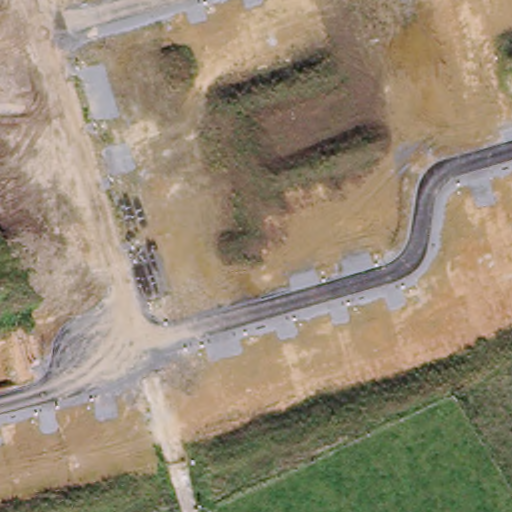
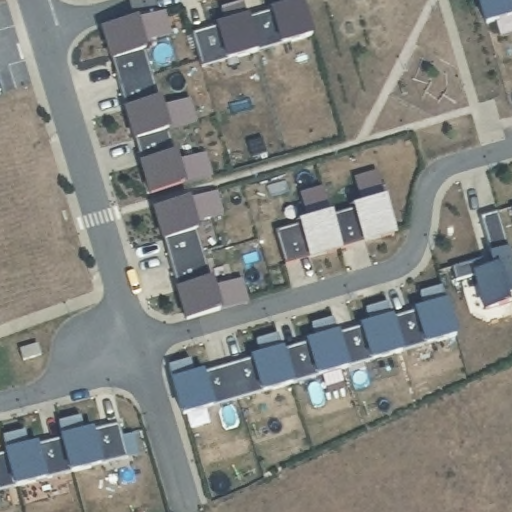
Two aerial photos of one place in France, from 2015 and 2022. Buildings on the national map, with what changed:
new [(280,49),(278,41),(258,46),(259,55),(227,65),(224,56),(203,68),(192,36),(215,25),(226,21),(222,9),(243,2),(247,15),(269,8),(279,5),(277,0),(301,0),(314,38),(280,49)]
new [(485,27),(477,0),(512,0),(512,19),(485,27)]
new [(173,36),(144,39),(146,54),(159,100),(162,99),(163,104),(190,98),(198,121),(169,126),(177,154),(178,158),(207,153),(214,178),(184,181),(187,187),(149,199),(101,29),(165,11),(173,36)]
new [(332,215),(363,206),(354,178),(377,170),(387,198),(398,234),(364,244),(362,238),(341,244),(344,251),(309,261),(308,256),(285,265),(275,232),(298,223),(308,219),(299,193),(323,185),(332,215)]
new [(225,215),(195,220),(199,236),(212,280),(213,284),(243,277),(251,303),(222,309),(223,314),(185,323),(175,290),(153,210),(189,199),(218,191),(225,215)]
new [(508,250),(512,263),(512,292),(505,293),(509,306),(484,314),(472,275),(456,281),(452,267),(488,255),(492,254),(481,219),(496,213),(508,250)]
new [(195,373),(204,370),(250,357),(259,354),(255,341),(277,334),(280,348),(284,347),(314,337),(310,325),(333,319),(336,330),(338,329),(339,332),(359,326),(369,323),(364,309),(387,302),(391,316),(413,309),(422,306),(418,294),(441,286),(446,299),(458,337),(424,347),(421,340),(402,346),(404,352),(369,362),(368,355),(348,363),(349,369),(316,379),(314,372),(292,380),(294,387),(261,397),(259,388),(212,402),(214,407),(182,418),(169,381),(173,380),(168,367),(191,360),(195,373)]
new [(100,458),(103,468),(69,477),(67,468),(45,473),(47,482),(14,491),(11,481),(0,484),(0,452),(4,451),(1,438),(25,432),(29,443),(60,436),(58,423),(81,417),(85,429),(93,427),(119,424),(128,458),(100,458)]

